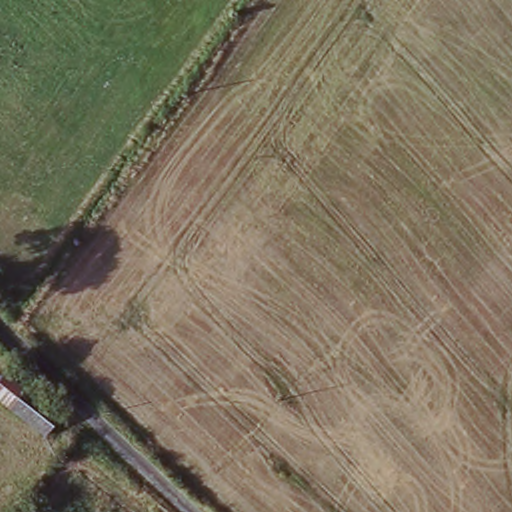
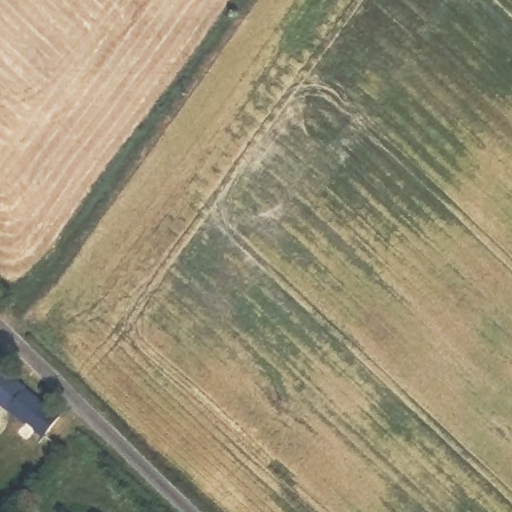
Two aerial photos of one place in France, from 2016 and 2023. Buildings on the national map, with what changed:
unchanged [(49,443),(12,412),(0,403),(0,377),(3,374),(27,394),(64,424),(49,443)]

